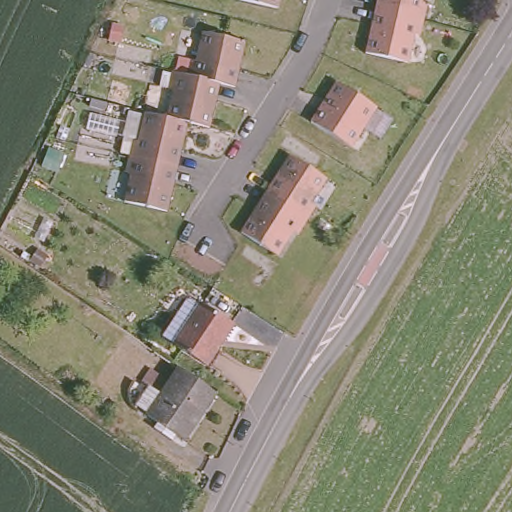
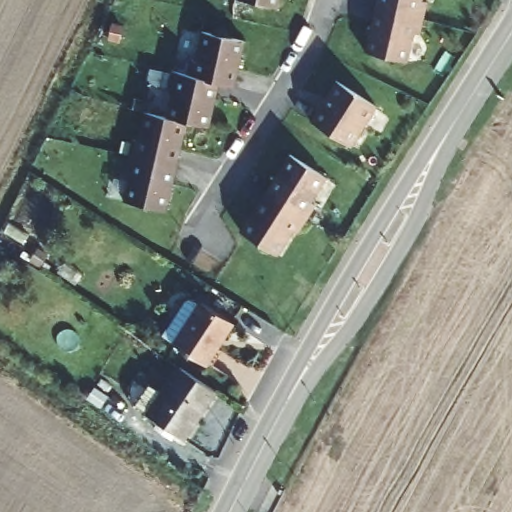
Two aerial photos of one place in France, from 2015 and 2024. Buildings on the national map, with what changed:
unchanged [(259,0),(279,0),(277,5),(259,0)]
unchanged [(382,0),(430,0),(436,2),(431,19),(381,4),(382,0)]
unchanged [(431,19),(426,34),(418,32),(409,61),(367,48),(381,4),(431,19)]
unchanged [(191,54),(199,56),(207,29),(248,41),(236,85),(221,81),(186,70),(191,54)]
unchanged [(221,81),(208,126),(188,120),(166,113),(176,83),(168,81),(173,66),(186,70),(221,81)]
unchanged [(374,99),(359,124),(366,129),(356,144),(314,116),(339,76),(374,99)]
unchanged [(131,134),(138,136),(147,107),(166,113),(188,120),(174,164),(125,151),(131,134)]
unchanged [(293,148),(329,171),(311,197),(319,202),(309,216),(266,189),(293,148)]
unchanged [(161,212),(118,199),(127,168),(121,166),(125,151),(174,164),(161,212)]
unchanged [(309,216),(299,231),(293,226),(276,252),(240,229),(266,189),(309,216)]
unchanged [(234,322),(207,361),(176,342),(203,302),(234,322)]
unchanged [(154,424),(160,416),(158,414),(141,403),(156,382),(172,393),(188,369),(221,392),(191,436),(179,428),(173,437),(154,424)]

